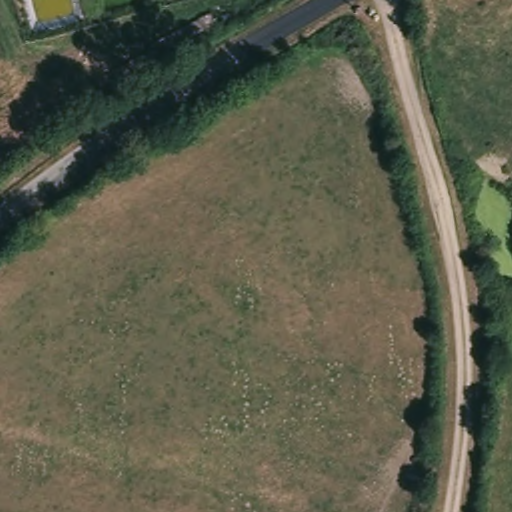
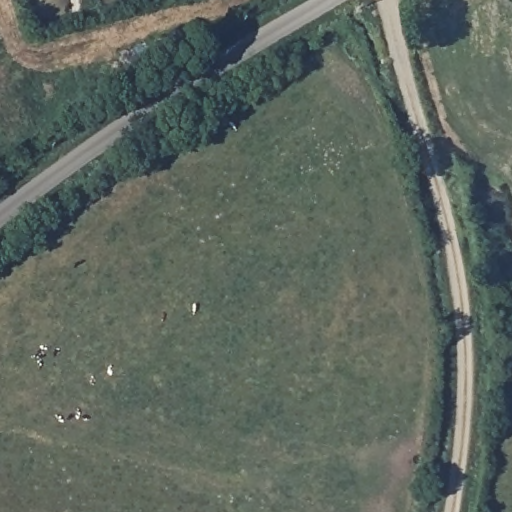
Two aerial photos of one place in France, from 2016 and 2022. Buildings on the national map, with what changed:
[]

